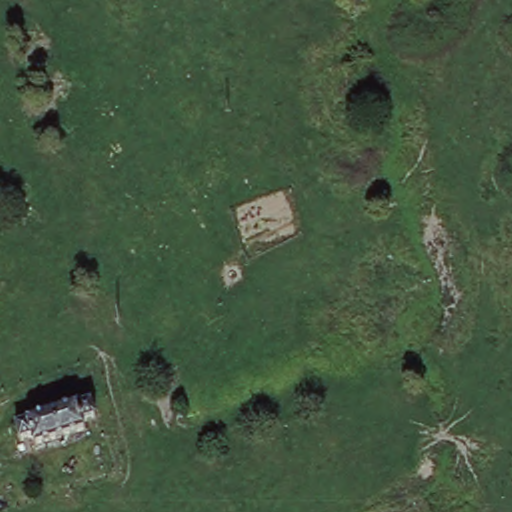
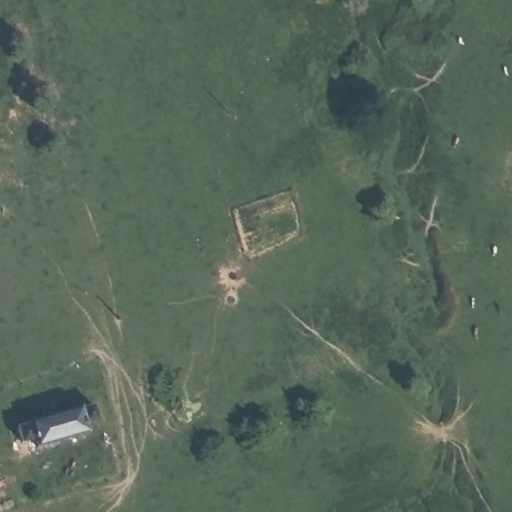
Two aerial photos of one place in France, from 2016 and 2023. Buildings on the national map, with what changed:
unchanged [(90,403),(96,419),(81,423),(85,437),(39,450),(35,438),(19,442),(15,427),(90,403)]

